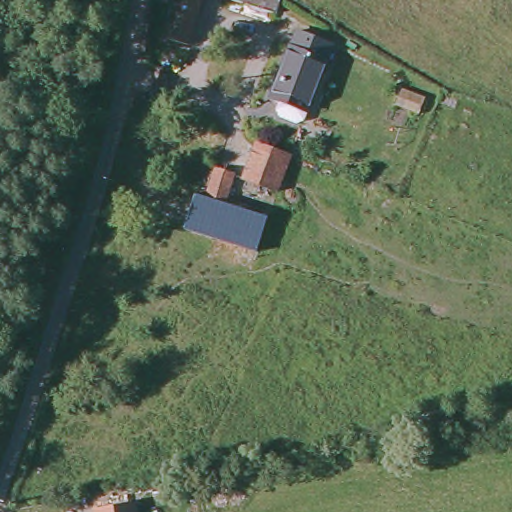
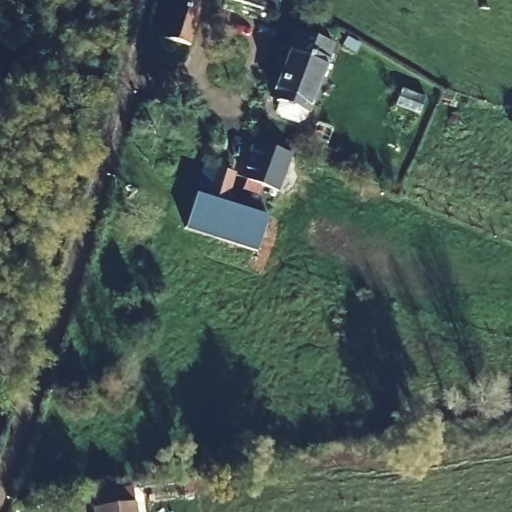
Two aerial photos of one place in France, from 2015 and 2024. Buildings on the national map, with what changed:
unchanged [(168,6),(170,0),(202,0),(190,44),(165,38),(174,8),(168,6)]
unchanged [(282,0),(280,11),(230,0),(282,0)]
unchanged [(277,89),(308,31),(335,44),(310,109),(277,89)]
unchanged [(262,139),(288,154),(271,183),(245,168),(262,139)]
unchanged [(235,174),(226,203),(268,217),(257,252),(185,229),(195,194),(205,198),(215,168),(235,174)]
unchanged [(137,503),(138,512),(94,512),(94,509),(137,503)]

